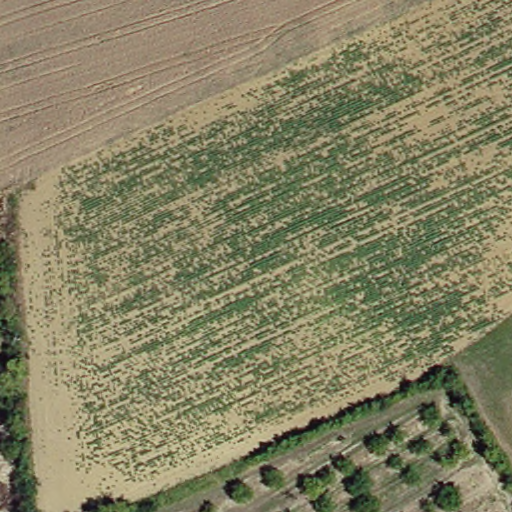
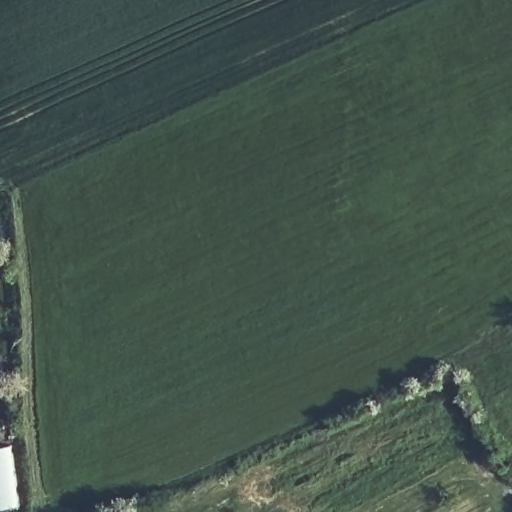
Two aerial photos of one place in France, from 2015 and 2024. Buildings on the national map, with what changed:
new [(0,507),(0,447),(12,446),(20,504),(0,507)]

